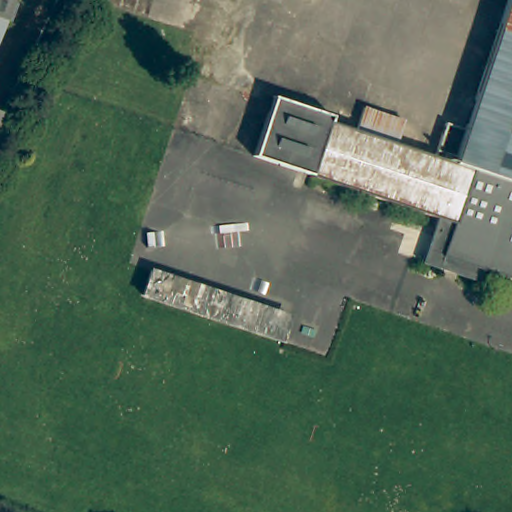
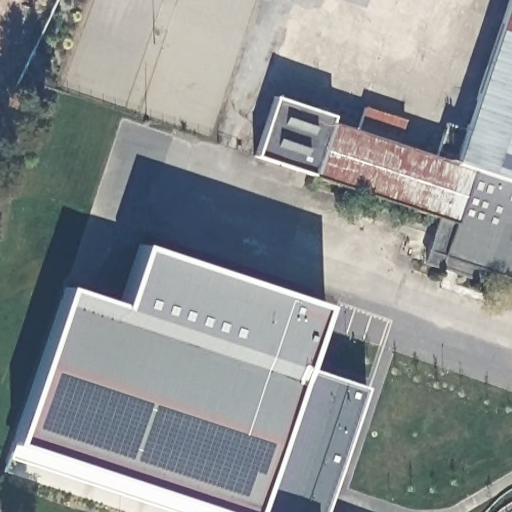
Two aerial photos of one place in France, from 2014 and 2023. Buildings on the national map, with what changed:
unchanged [(0,32),(0,0),(13,0),(0,32)]
unchanged [(476,279),(422,262),(436,219),(307,176),(307,175),(250,155),(271,96),(329,116),(327,122),(352,130),(361,107),(401,121),(393,143),(432,157),(443,123),(462,129),(506,0),(512,0),(512,280),(479,270),(476,279)]
unchanged [(2,114),(0,117),(0,113),(2,114)]
new [(366,388),(324,512),(220,512),(16,442),(67,289),(120,305),(139,247),(323,307),(300,367),(366,388)]

